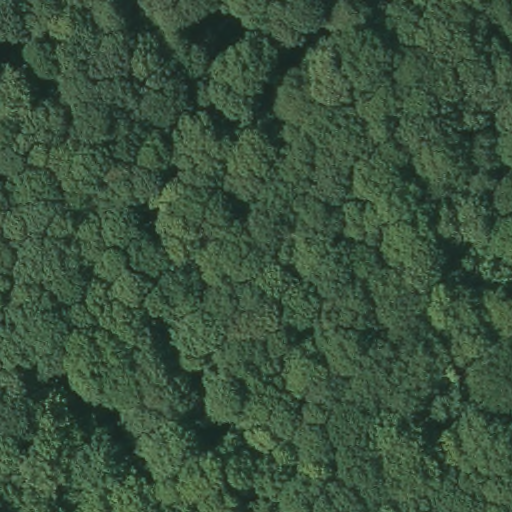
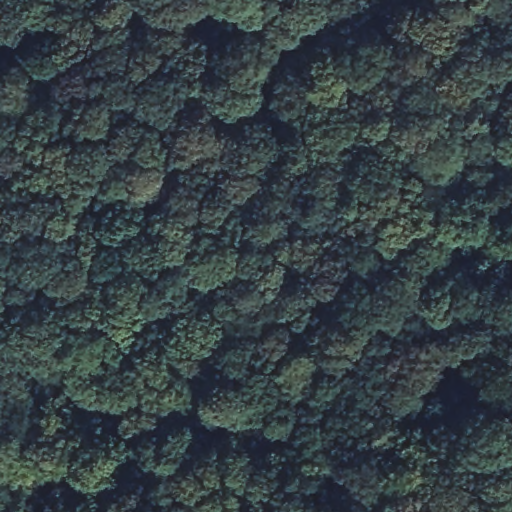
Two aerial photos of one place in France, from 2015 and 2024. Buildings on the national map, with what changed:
[]

